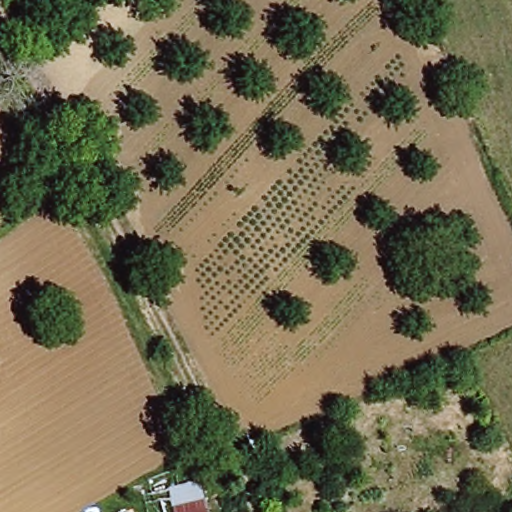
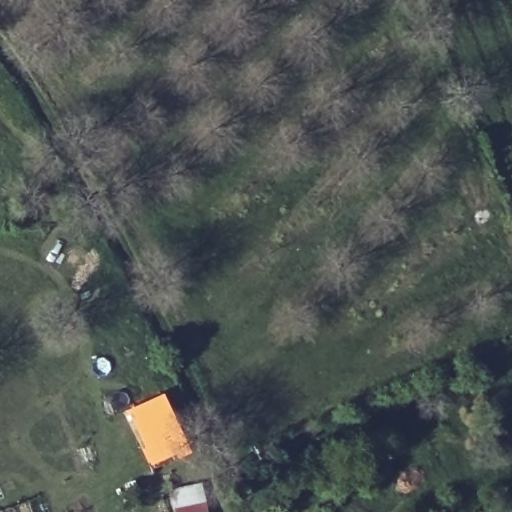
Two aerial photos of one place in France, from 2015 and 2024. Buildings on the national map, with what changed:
new [(138,417),(135,406),(163,392),(192,450),(150,465),(132,419),(138,417)]
unchanged [(200,481),(207,512),(174,512),(168,487),(200,481)]

